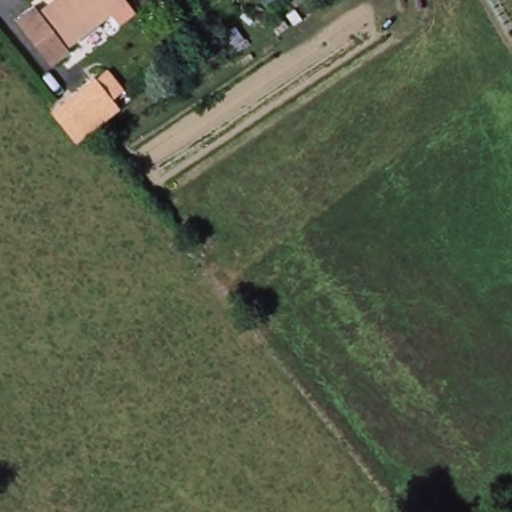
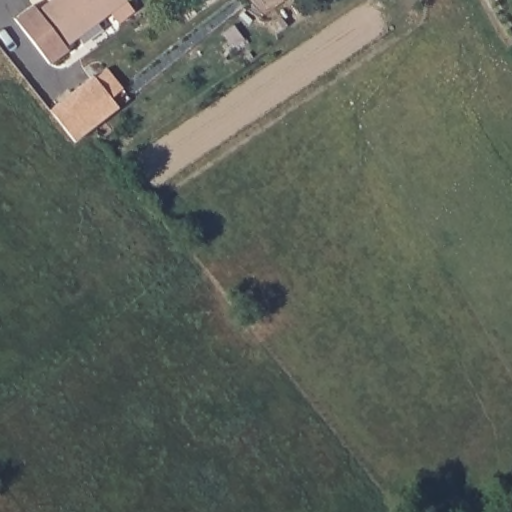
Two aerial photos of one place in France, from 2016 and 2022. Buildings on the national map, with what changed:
unchanged [(64,45),(67,50),(49,64),(15,19),(34,4),(38,10),(51,0),(126,0),(134,11),(117,23),(109,11),(64,45)]
unchanged [(59,102),(89,76),(110,99),(77,125),(59,102)]

